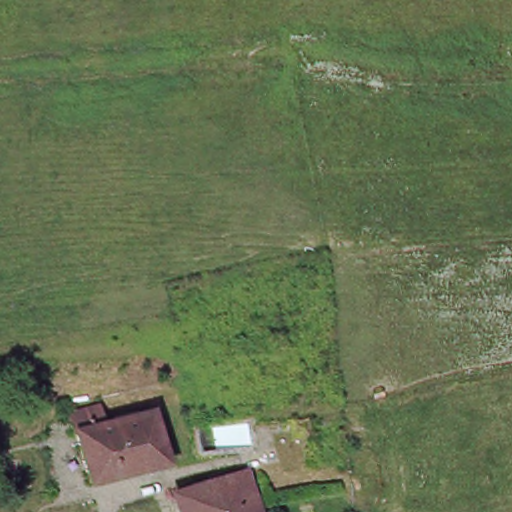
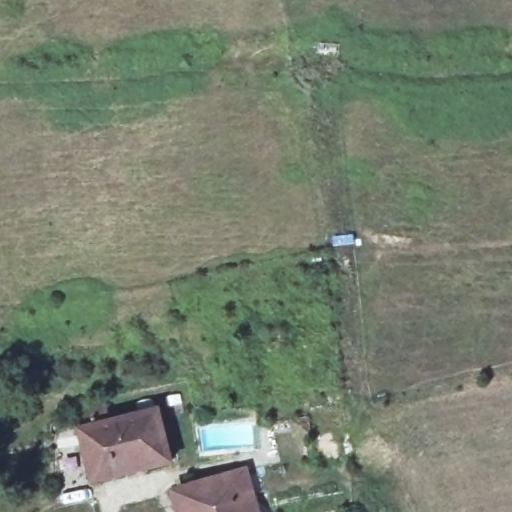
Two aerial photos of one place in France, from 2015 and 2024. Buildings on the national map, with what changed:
unchanged [(97,486),(90,435),(84,437),(79,416),(115,404),(122,427),(126,426),(164,415),(176,467),(137,478),(121,482),(97,486)]
unchanged [(245,469),(258,512),(183,512),(175,490),(245,469)]

